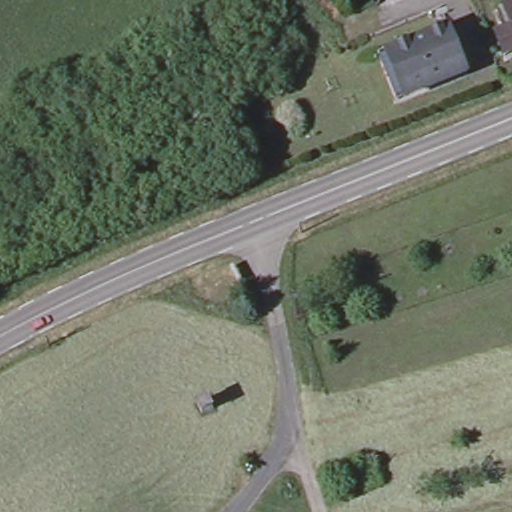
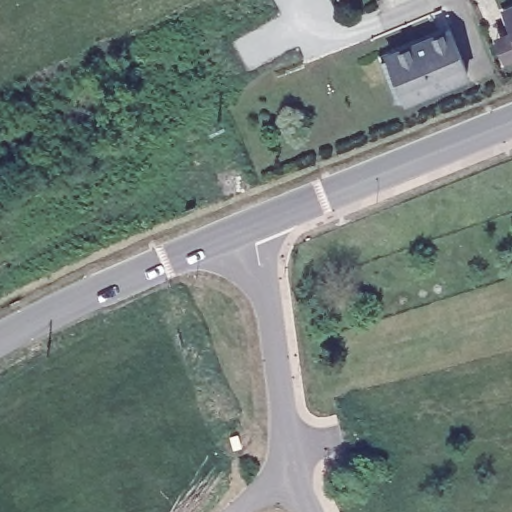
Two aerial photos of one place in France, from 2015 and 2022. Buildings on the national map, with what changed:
unchanged [(491,36),(508,29),(501,12),(512,8),(512,53),(499,59),(491,36)]
unchanged [(382,59),(395,54),(452,30),(469,72),(412,95),(398,100),(382,59)]

